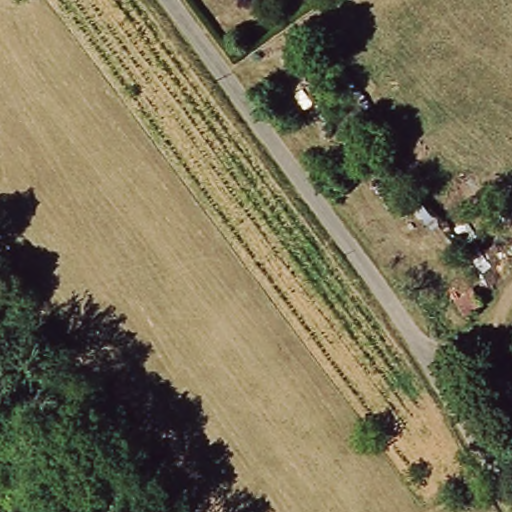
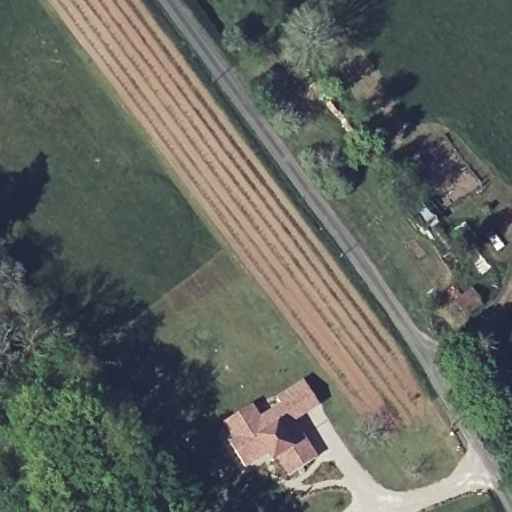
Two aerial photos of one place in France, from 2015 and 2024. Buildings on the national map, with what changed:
new [(227,423),(254,405),(262,418),(284,404),(279,398),(305,381),(320,403),(295,420),(319,456),(292,474),(280,456),(275,460),(272,455),(250,470),(230,440),(235,436),(227,423)]

